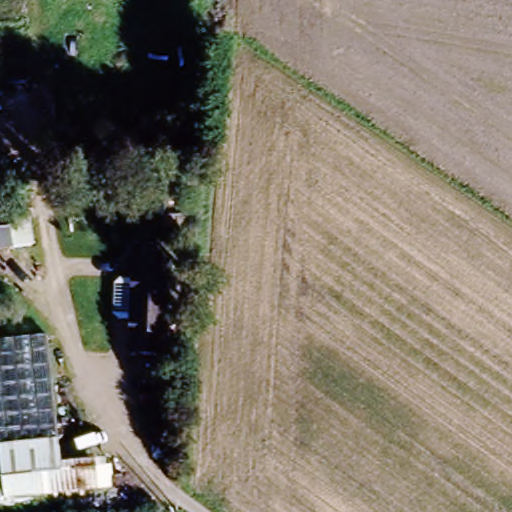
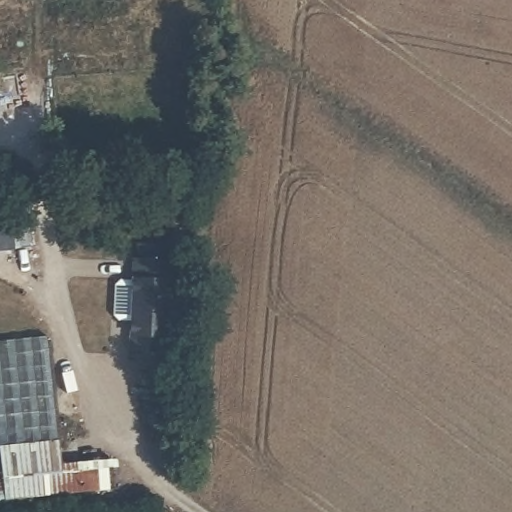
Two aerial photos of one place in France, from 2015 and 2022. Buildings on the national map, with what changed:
unchanged [(11,247),(6,211),(38,207),(43,243),(11,247)]
unchanged [(11,247),(0,249),(0,212),(6,211),(11,247)]
unchanged [(126,353),(128,258),(165,260),(162,354),(126,353)]
unchanged [(54,446),(0,451),(0,343),(43,339),(54,446)]
unchanged [(78,495),(1,502),(0,491),(0,451),(54,446),(55,468),(76,468),(113,465),(114,492),(78,495)]

